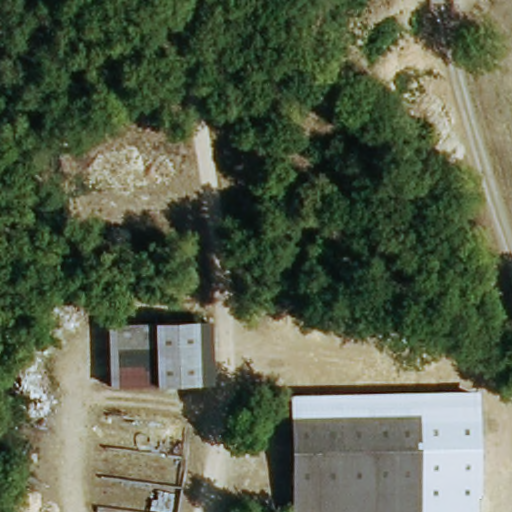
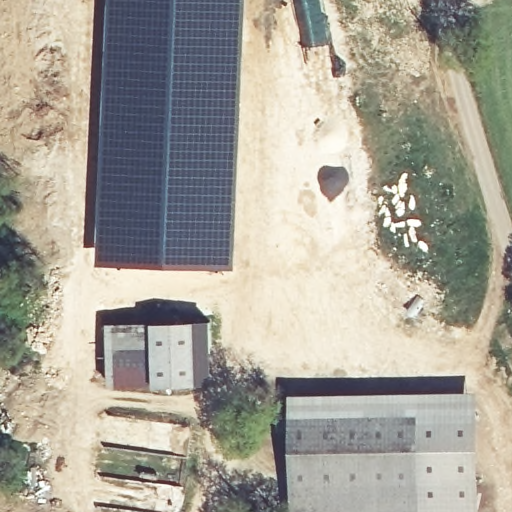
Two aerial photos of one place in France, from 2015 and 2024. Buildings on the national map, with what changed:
new [(246,0),(237,268),(99,263),(109,0),(246,0)]
unchanged [(210,323),(212,385),(152,387),(111,386),(109,326),(152,323),(210,323)]
unchanged [(417,420),(417,408),(292,411),(292,395),(479,390),(479,512),(416,512),(417,420)]
unchanged [(416,512),(291,512),(292,446),(292,411),(417,408),(417,420),(416,512)]

